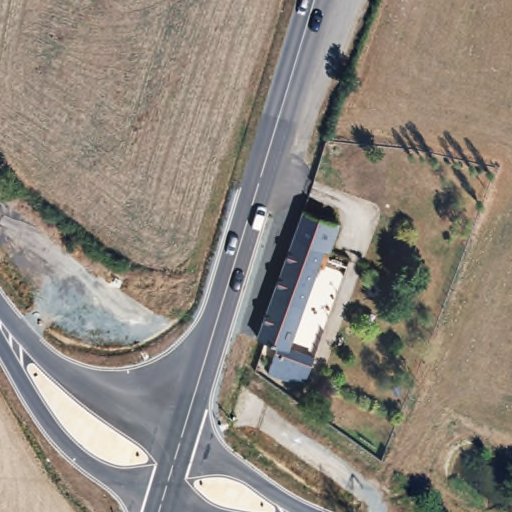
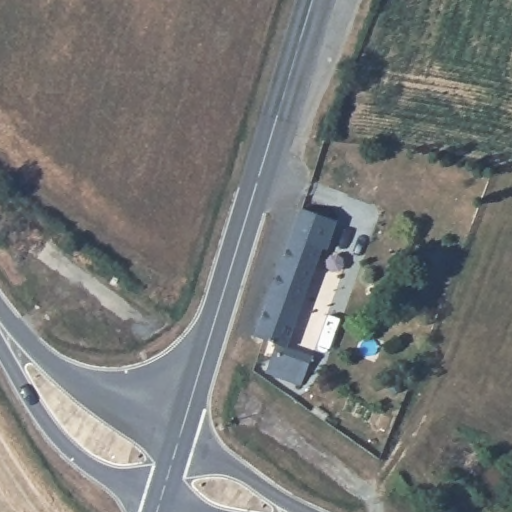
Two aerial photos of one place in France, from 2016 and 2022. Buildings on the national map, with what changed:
unchanged [(303,210),(309,195),(334,205),(329,220),(336,221),(328,252),(323,251),(281,354),(308,365),(303,380),(271,367),(273,357),(269,350),(271,340),(258,335),(289,251),(303,210)]

